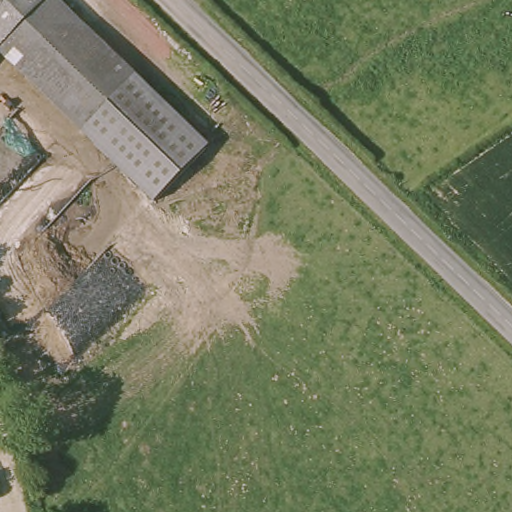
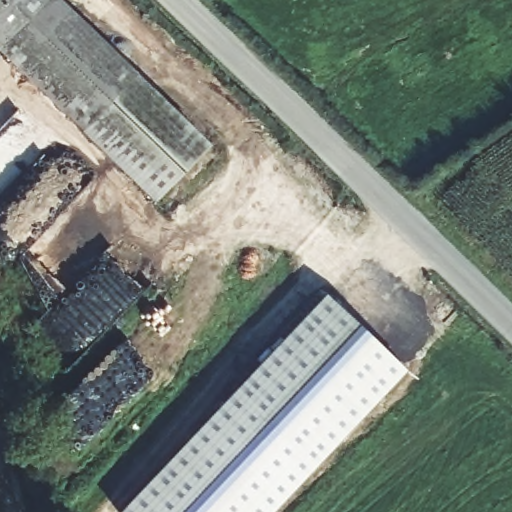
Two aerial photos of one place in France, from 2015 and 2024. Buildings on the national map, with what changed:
unchanged [(87,128),(1,49),(0,48),(0,0),(54,0),(135,76),(87,128)]
unchanged [(0,50),(0,48),(1,49),(0,50)]
unchanged [(208,146),(161,197),(87,128),(135,76),(208,146)]
new [(409,373),(279,512),(125,512),(329,298),(409,373)]

